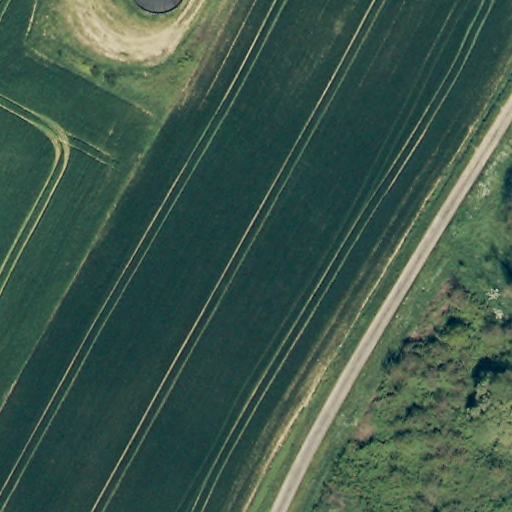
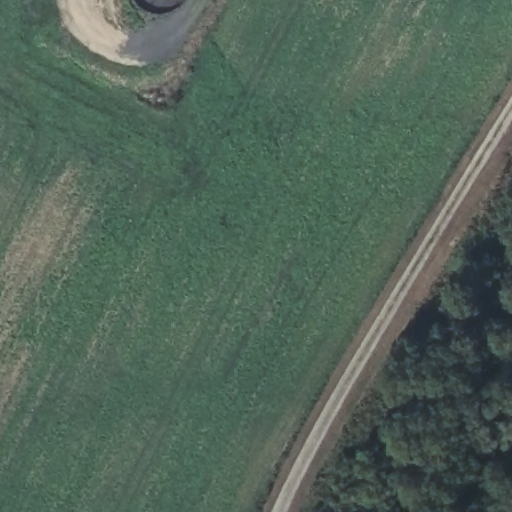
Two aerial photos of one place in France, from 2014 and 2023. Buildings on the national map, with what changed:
[]

